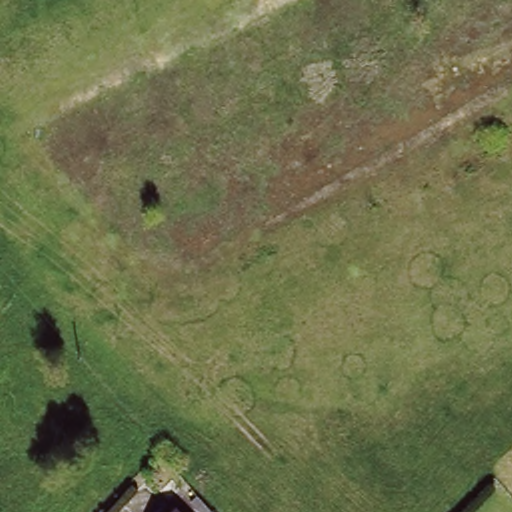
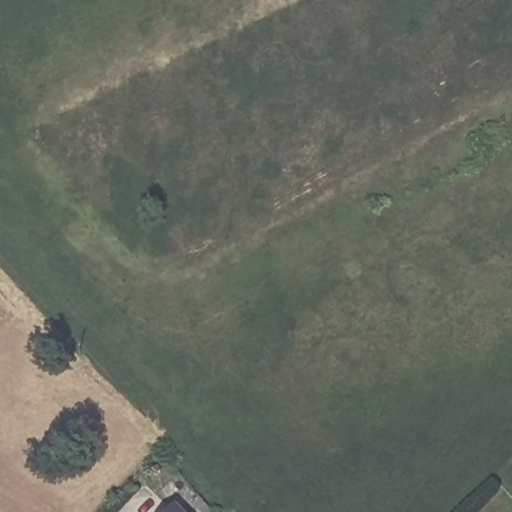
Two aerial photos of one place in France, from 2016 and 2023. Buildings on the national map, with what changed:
unchanged [(188,512),(172,512),(180,504),(188,512)]

